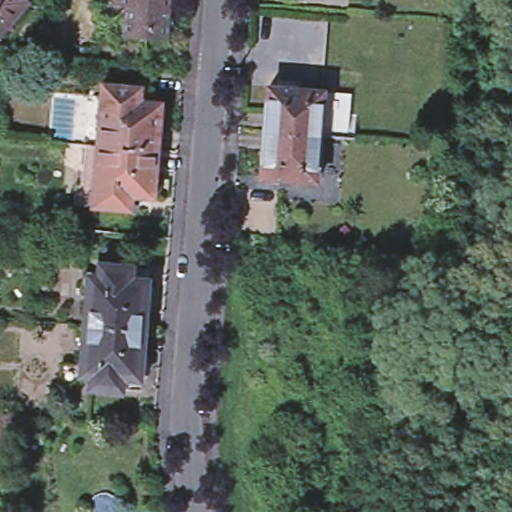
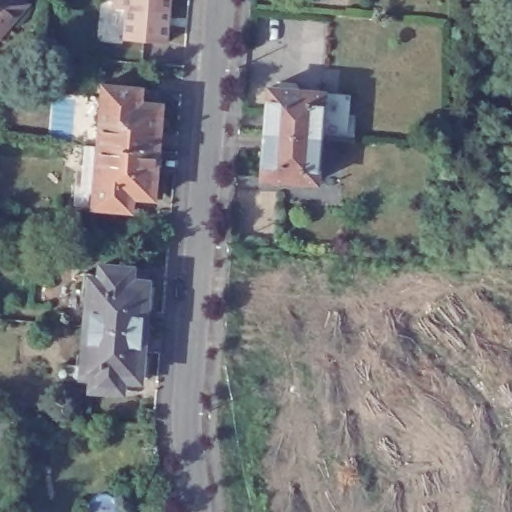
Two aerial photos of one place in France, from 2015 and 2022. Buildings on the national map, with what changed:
unchanged [(26,8),(0,37),(0,0),(17,0),(26,8)]
unchanged [(165,53),(122,49),(124,18),(112,17),(113,0),(170,0),(165,53)]
unchanged [(102,81),(140,85),(139,99),(160,101),(157,148),(97,143),(102,81)]
unchanged [(267,88),(324,93),(320,138),(264,134),(267,88)]
unchanged [(320,138),(317,183),(261,179),(264,134),(320,138)]
unchanged [(157,148),(153,196),(131,194),(130,207),(92,204),(97,143),(157,148)]
unchanged [(89,269),(97,270),(99,258),(128,262),(127,274),(144,276),(144,280),(150,281),(147,302),(141,302),(137,326),(82,322),(89,269)]
unchanged [(137,326),(135,350),(140,350),(139,371),(132,370),(131,375),(114,373),(113,385),(82,381),(84,368),(75,367),(82,322),(137,326)]
unchanged [(6,447),(0,447),(0,416),(5,416),(6,447)]
unchanged [(22,434),(7,433),(7,416),(24,417),(22,434)]

